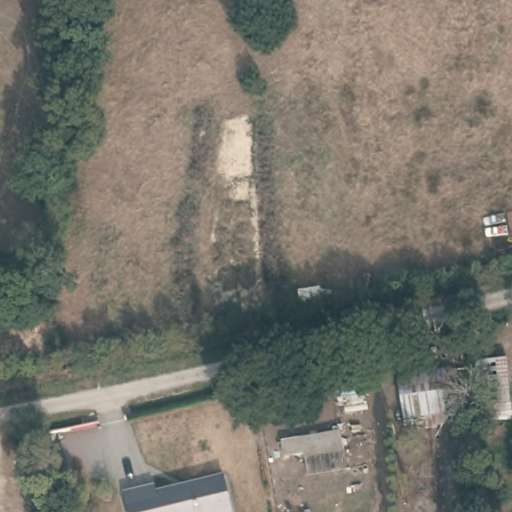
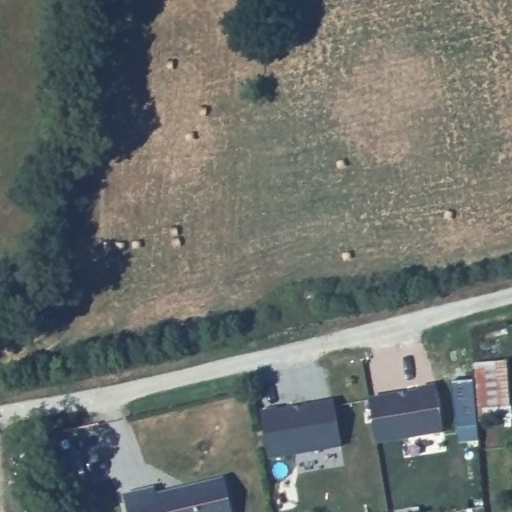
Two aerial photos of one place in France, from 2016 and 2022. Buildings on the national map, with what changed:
new [(478,421),(473,363),(508,361),(511,404),(512,412),(512,420),(478,421)]
new [(377,444),(368,397),(435,384),(445,432),(377,444)]
new [(316,452),(319,468),(297,471),(295,456),(268,460),(259,410),(277,407),(277,409),(334,400),(342,448),(316,452)]
demolished [(343,432),(344,453),(305,460),(304,454),(284,458),(282,442),(343,432)]
unchanged [(158,485),(159,492),(174,488),(191,484),(227,475),(235,512),(131,512),(126,492),(158,485)]

